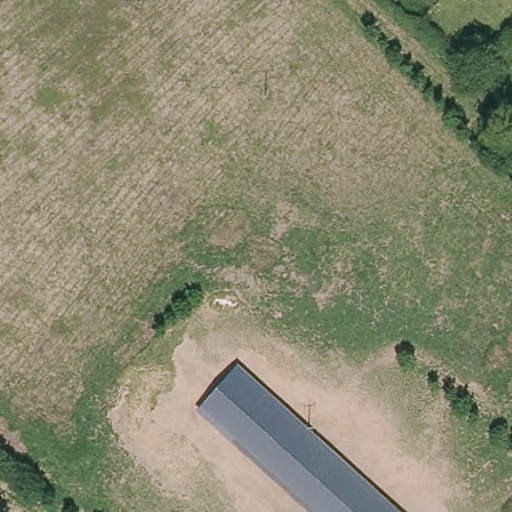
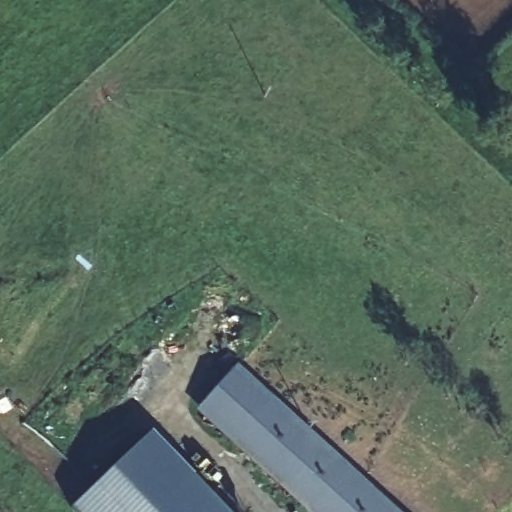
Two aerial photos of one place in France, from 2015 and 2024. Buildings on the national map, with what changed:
unchanged [(390,512),(319,512),(191,395),(223,360),(390,512)]
new [(71,512),(68,509),(151,432),(225,512),(71,512)]

